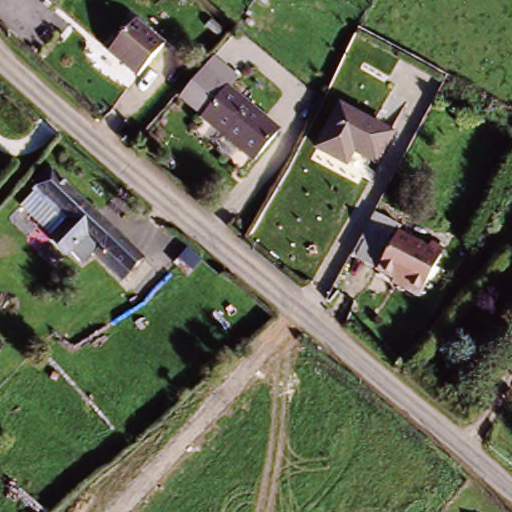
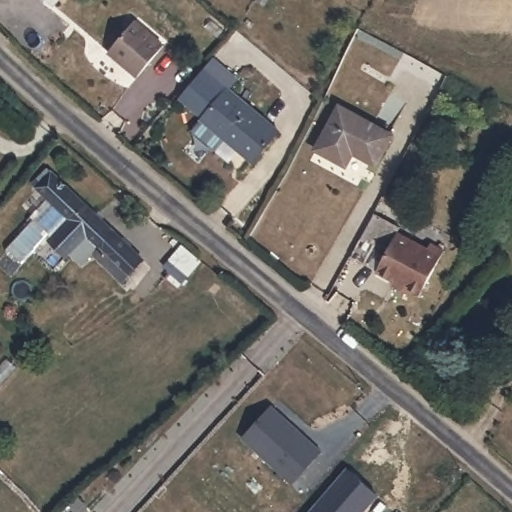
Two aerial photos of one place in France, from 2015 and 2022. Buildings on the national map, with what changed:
unchanged [(147,72),(116,50),(137,23),(167,45),(147,72)]
unchanged [(261,155),(247,144),(241,150),(203,120),(207,115),(183,95),(213,60),(236,77),(230,86),(283,126),(261,155)]
unchanged [(318,145),(345,104),(397,136),(379,165),(356,151),(348,164),(318,145)]
unchanged [(123,275),(112,263),(98,249),(85,262),(65,244),(70,238),(65,234),(75,225),(40,192),(45,187),(55,175),(131,247),(141,258),(123,275)]
unchanged [(357,260),(383,220),(407,234),(405,239),(383,276),(357,260)]
unchanged [(410,297),(411,293),(383,276),(405,239),(435,257),(438,252),(451,260),(447,265),(423,304),(410,297)]
new [(319,450),(291,478),(245,435),(272,405),(319,450)]
new [(378,495),(363,512),(313,512),(349,470),(378,495)]

